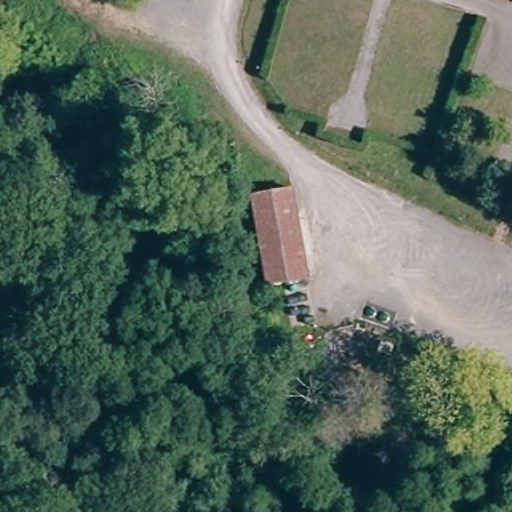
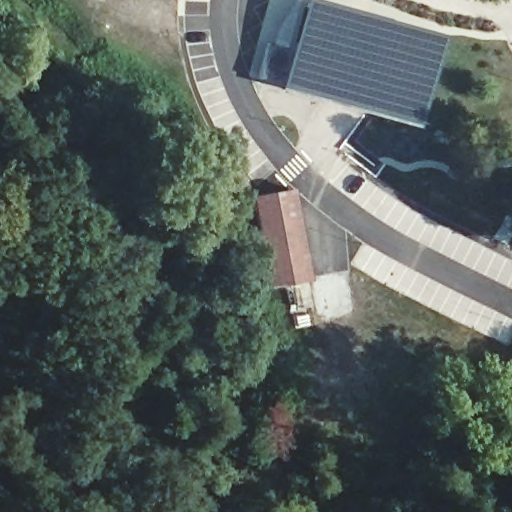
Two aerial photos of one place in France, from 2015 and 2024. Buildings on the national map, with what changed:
new [(301,0),(321,0),(358,9),(441,34),(418,127),(376,116),(278,86),(301,0)]
unchanged [(261,196),(298,194),(302,284),(265,286),(261,196)]

